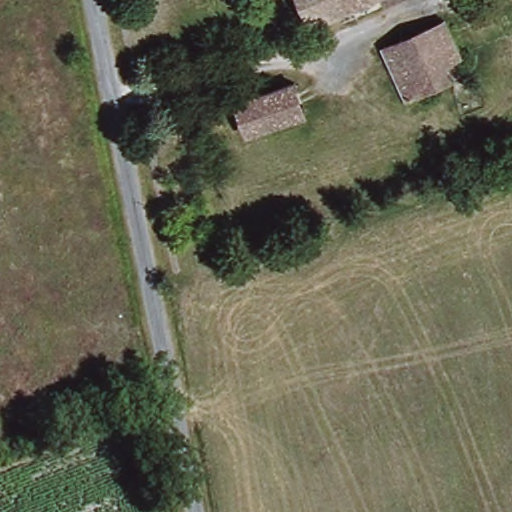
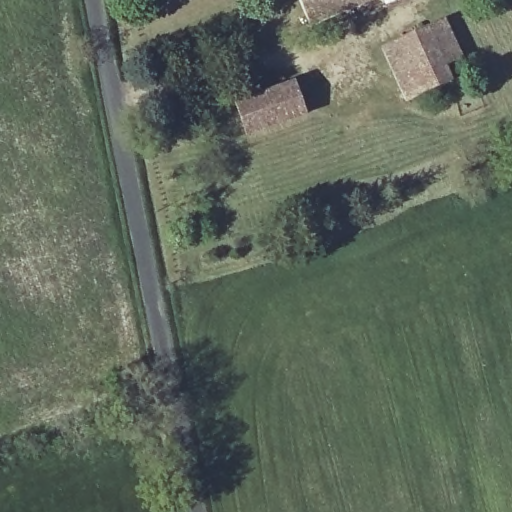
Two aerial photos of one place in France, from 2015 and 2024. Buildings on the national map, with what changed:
unchanged [(306,0),(383,0),(317,27),(306,0)]
unchanged [(409,93),(387,45),(429,27),(450,17),(465,52),(445,61),(451,75),(409,93)]
unchanged [(309,114),(251,137),(238,104),(296,81),(309,114)]

